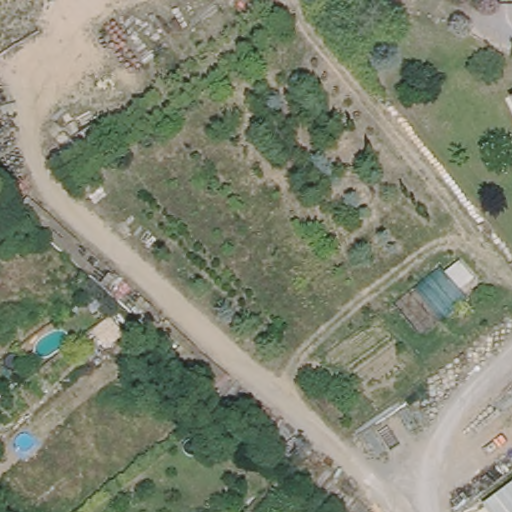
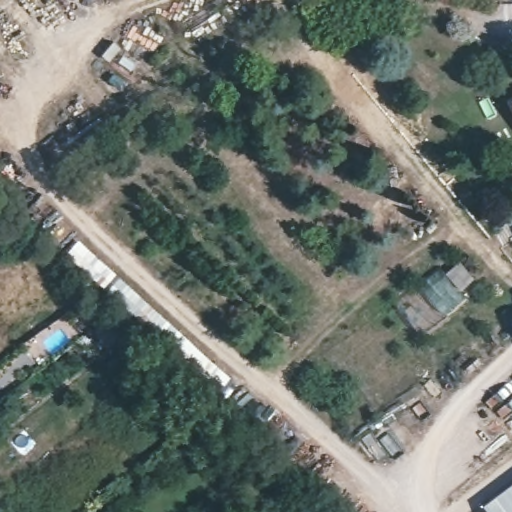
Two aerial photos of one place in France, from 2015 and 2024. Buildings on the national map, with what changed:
unchanged [(109,390),(115,395),(107,403),(102,397),(109,390)]
unchanged [(487,501),(512,482),(512,512),(495,512),(487,501)]

